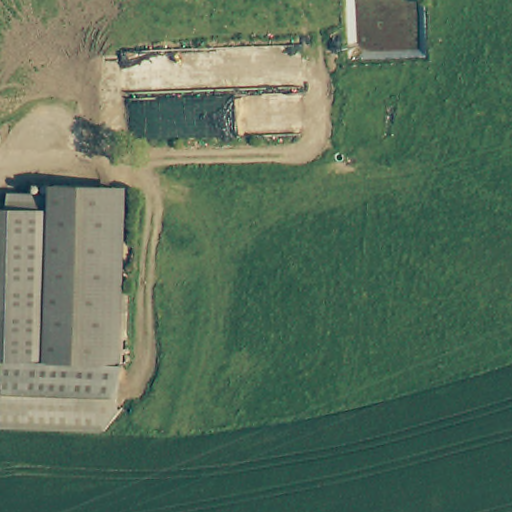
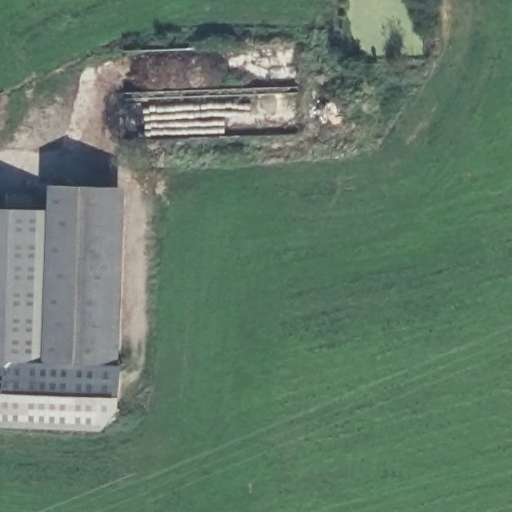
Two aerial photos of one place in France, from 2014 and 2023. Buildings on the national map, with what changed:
unchanged [(61,185),(120,189),(107,370),(47,367),(60,190),(61,185)]
unchanged [(6,364),(16,210),(17,189),(60,190),(47,367),(6,364)]
unchanged [(16,210),(6,364),(2,364),(0,364),(0,211),(16,210)]
unchanged [(123,371),(120,416),(103,437),(0,430),(0,397),(2,364),(6,364),(47,367),(107,370),(123,371)]

